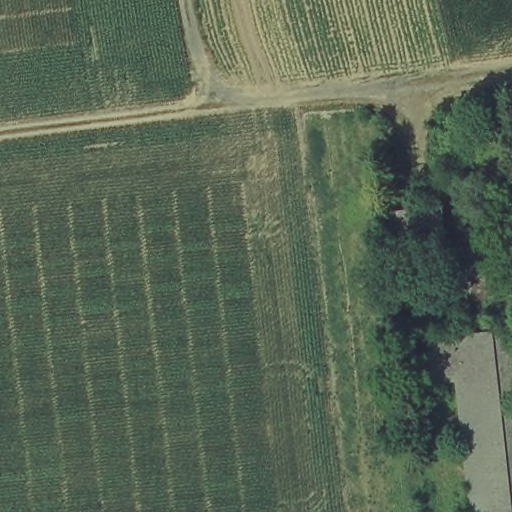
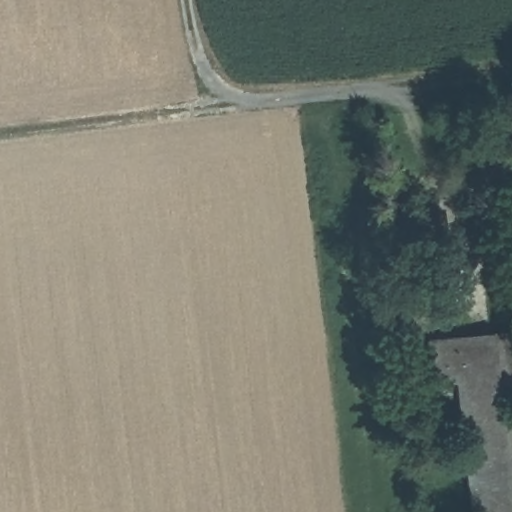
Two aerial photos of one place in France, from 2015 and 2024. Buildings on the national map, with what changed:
unchanged [(480,186),(494,151),(511,159),(498,196),(480,186)]
unchanged [(394,269),(388,214),(444,207),(450,264),(394,269)]
unchanged [(438,397),(433,342),(511,335),(512,346),(512,512),(474,512),(462,396),(438,397)]

